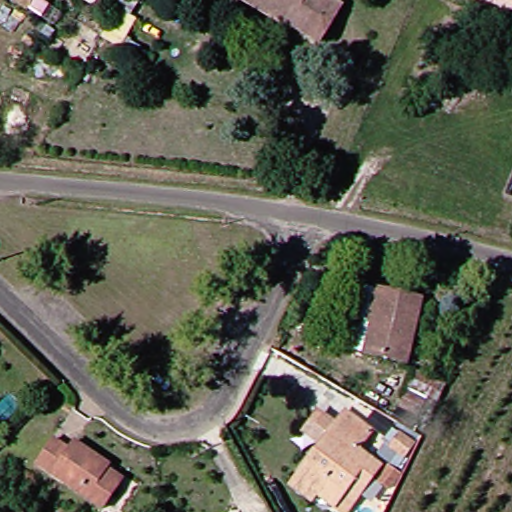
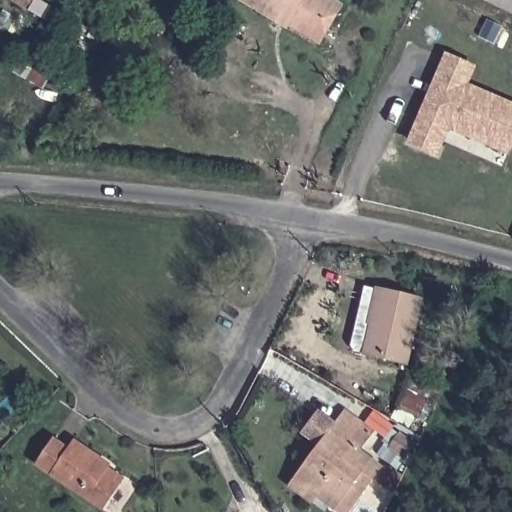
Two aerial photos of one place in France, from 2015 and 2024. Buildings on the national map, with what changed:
unchanged [(9,0),(26,0),(21,8),(9,0)]
unchanged [(21,8),(26,0),(52,0),(40,19),(21,8)]
unchanged [(336,0),(340,2),(317,41),(285,21),(282,25),(244,1),(242,0),(336,0)]
new [(512,0),(512,14),(483,0),(512,0)]
new [(450,131),(438,157),(407,143),(445,52),(477,66),(470,84),(512,102),(512,151),(510,157),(450,131)]
unchanged [(376,330),(370,328),(363,357),(353,356),(349,346),(366,287),(386,292),(376,330)]
unchanged [(387,290),(425,301),(405,370),(363,357),(370,328),(376,330),(386,292),(387,290)]
unchanged [(341,498),(335,493),(330,501),(319,489),(312,497),(288,475),(325,435),(348,410),(371,432),(355,450),(380,470),(358,497),(349,507),(341,498)]
unchanged [(119,473),(122,478),(116,486),(97,511),(32,465),(50,439),(60,450),(69,440),(104,465),(114,476),(119,473)]

